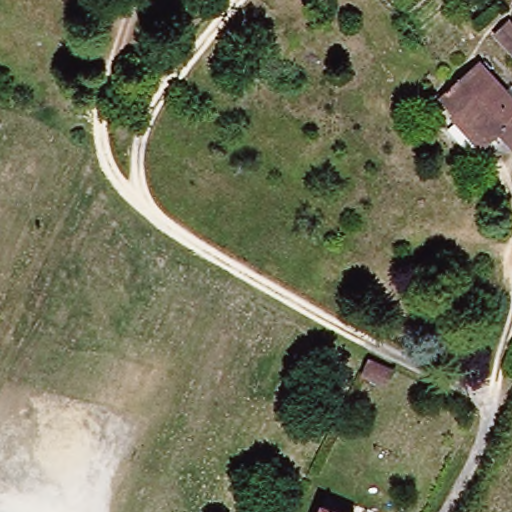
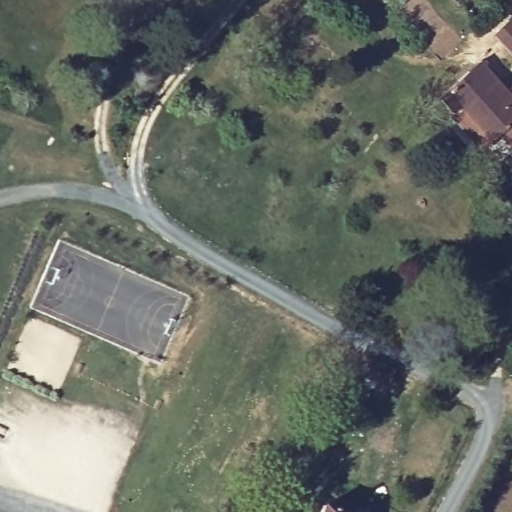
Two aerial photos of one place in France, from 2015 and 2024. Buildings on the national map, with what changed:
unchanged [(502,30),(512,21),(512,42),(502,30)]
unchanged [(449,124),(434,104),(475,68),(495,92),(507,82),(512,88),(512,151),(511,152),(495,134),(485,144),(473,155),(449,124)]
unchanged [(398,371),(390,389),(362,373),(370,353),(398,371)]
unchanged [(332,512),(329,512),(330,511),(332,512)]

